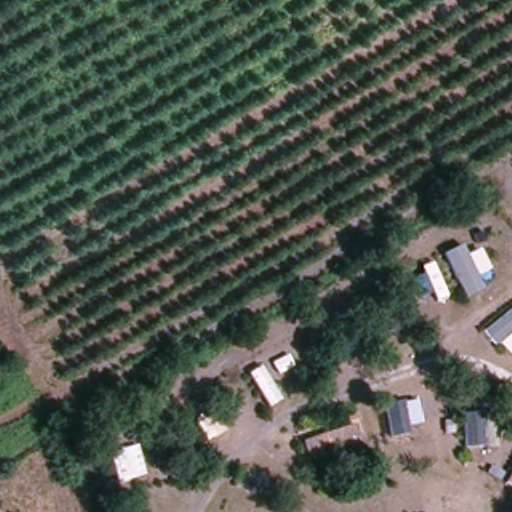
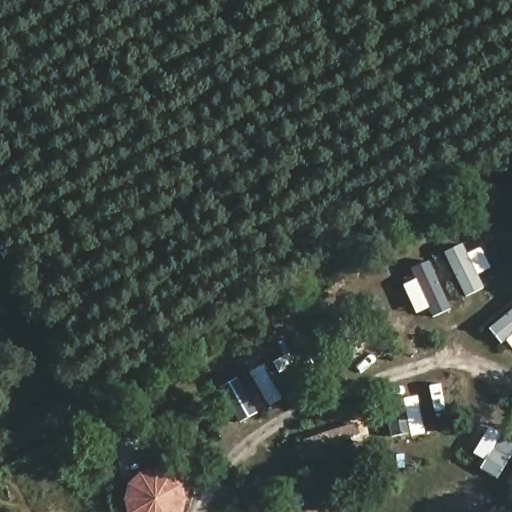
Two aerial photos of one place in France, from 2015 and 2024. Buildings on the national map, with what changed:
unchanged [(357,423),(358,434),(324,447),(326,459),(311,463),(306,440),(357,423)]
new [(125,501),(125,484),(137,472),(149,468),(164,467),(172,474),(182,484),(187,501),(184,512),(128,512),(125,501)]

